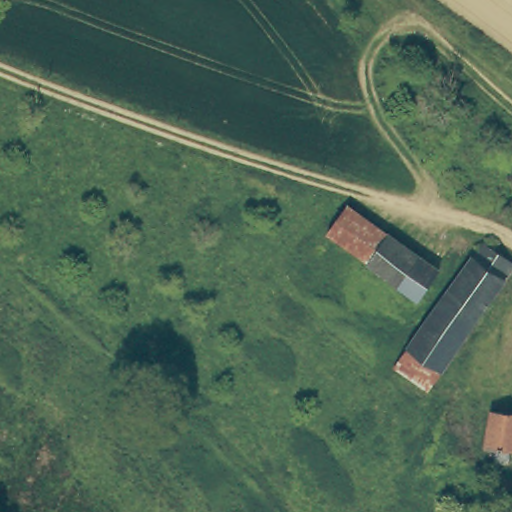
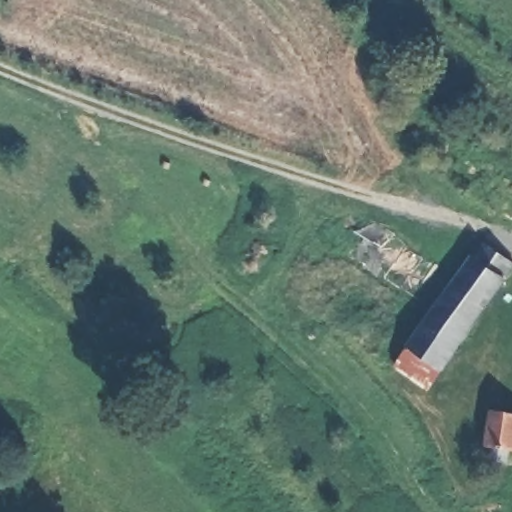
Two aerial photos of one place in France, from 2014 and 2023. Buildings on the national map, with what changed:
unchanged [(435,265),(416,294),(368,259),(370,257),(328,224),(349,199),(435,265)]
unchanged [(393,363),(404,347),(471,255),(474,258),(485,246),(512,267),(512,272),(441,371),(428,388),(393,363)]
unchanged [(498,446),(490,443),(492,408),(512,410),(512,460),(498,459),(496,458),(498,446)]

